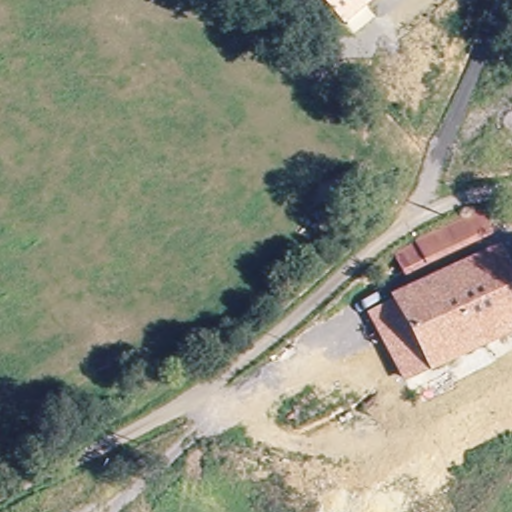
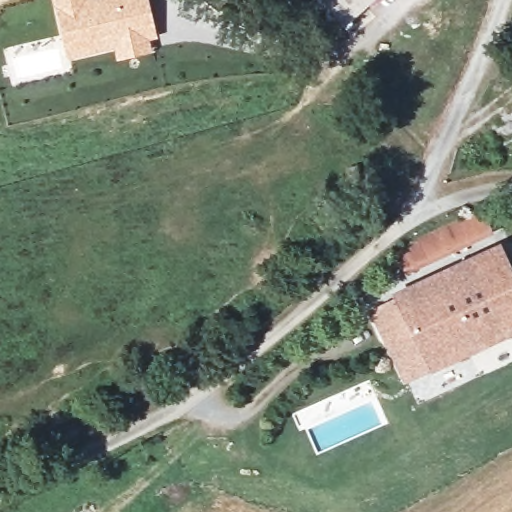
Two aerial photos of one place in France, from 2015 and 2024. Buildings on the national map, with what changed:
new [(157,37),(150,39),(152,53),(117,61),(115,48),(67,59),(52,0),(148,0),(157,37)]
unchanged [(343,27),(320,0),(375,0),(343,27)]
unchanged [(403,273),(395,249),(476,208),(490,232),(403,273)]
unchanged [(512,291),(512,332),(406,378),(375,312),(494,251),(512,291)]

